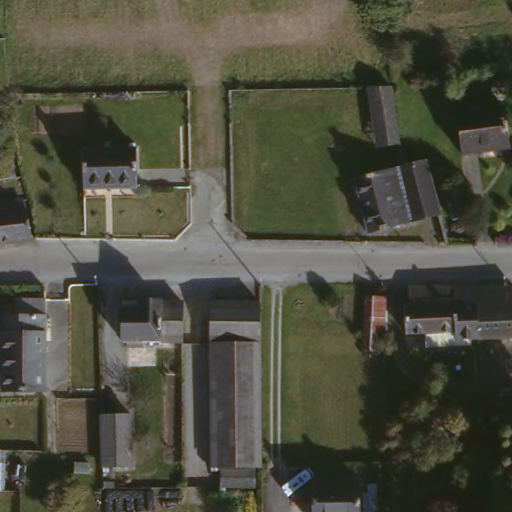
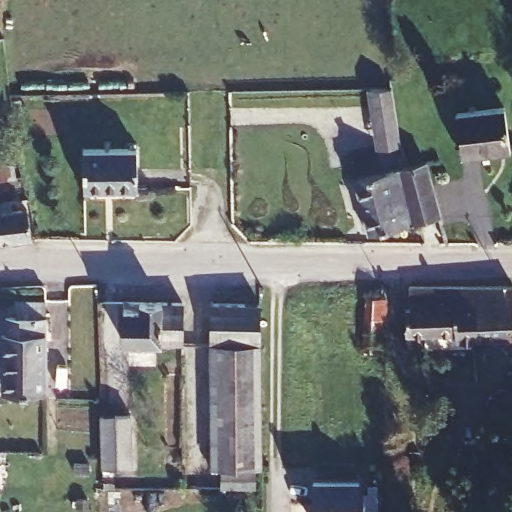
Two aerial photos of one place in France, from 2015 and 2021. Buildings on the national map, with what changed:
unchanged [(391,88),(396,114),(401,145),(378,149),(369,92),(391,88)]
unchanged [(504,108),(508,151),(458,153),(454,111),(504,108)]
unchanged [(133,144),(134,184),(85,186),(84,147),(133,144)]
unchanged [(16,156),(19,175),(0,178),(0,159),(16,156)]
unchanged [(410,165),(431,160),(444,214),(372,229),(361,176),(410,165)]
unchanged [(458,187),(465,214),(450,218),(444,191),(458,187)]
unchanged [(23,194),(26,206),(32,205),(36,238),(37,241),(0,246),(0,211),(0,200),(23,194)]
unchanged [(429,333),(408,331),(411,287),(512,289),(512,347),(474,345),(472,354),(428,350),(429,333)]
unchanged [(391,299),(386,353),(364,350),(371,296),(391,299)]
unchanged [(179,302),(179,341),(144,341),(144,345),(127,346),(127,343),(123,340),(124,303),(179,302)]
unchanged [(264,307),(264,346),(215,347),(215,307),(264,307)]
unchanged [(48,310),(52,384),(8,385),(5,327),(10,327),(10,311),(48,310)]
unchanged [(268,468),(215,471),(215,347),(264,346),(268,468)]
unchanged [(133,411),(134,462),(103,464),(101,411),(133,411)]
unchanged [(9,463),(7,491),(0,492),(0,463),(9,463)]
unchanged [(258,476),(257,490),(229,490),(230,476),(258,476)]
unchanged [(362,482),(363,512),(317,512),(318,484),(362,482)]

